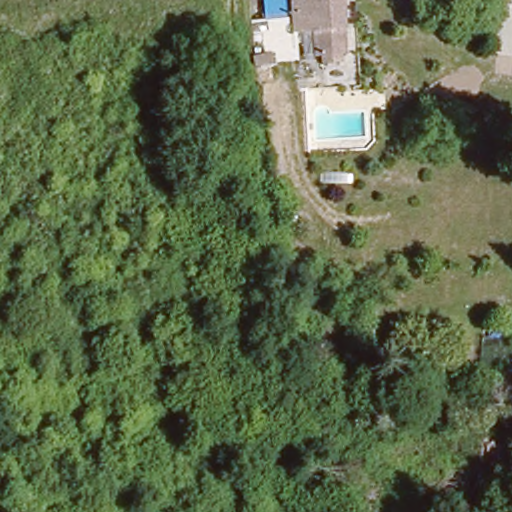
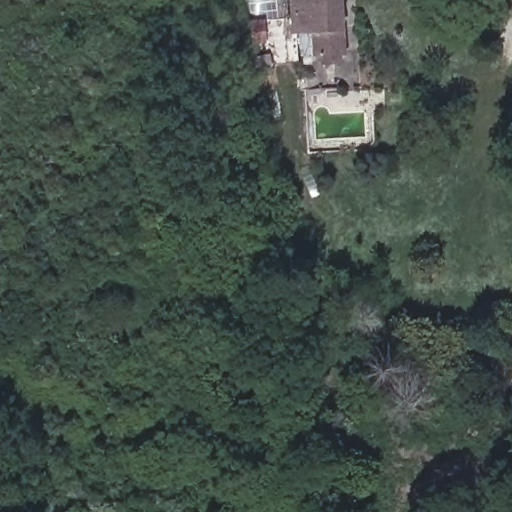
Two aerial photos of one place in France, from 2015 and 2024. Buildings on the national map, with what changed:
unchanged [(304,35),(305,64),(285,65),(283,41),(273,41),(271,0),(297,0),(298,20),(303,20),(301,0),(349,0),(353,55),(349,55),(350,63),(334,64),(334,57),(325,57),(312,57),(311,34),(304,35)]
unchanged [(280,56),(280,65),(266,67),(265,57),(280,56)]

